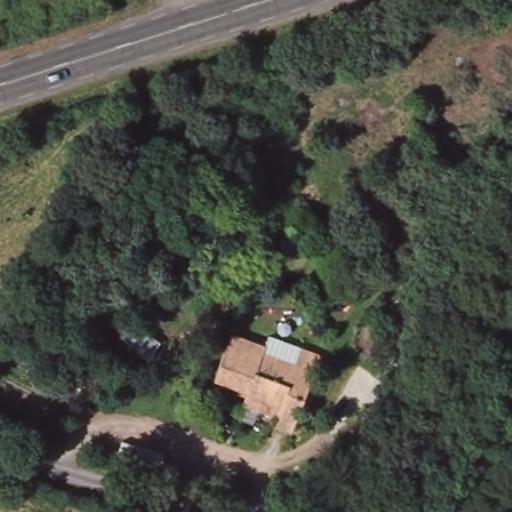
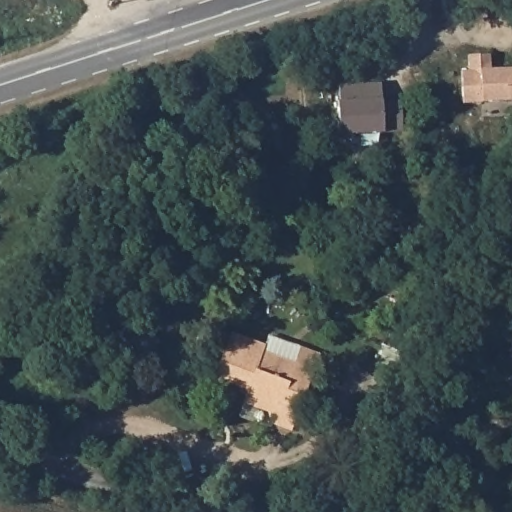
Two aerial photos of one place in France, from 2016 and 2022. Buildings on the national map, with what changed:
new [(470,55),(492,54),(492,69),(512,69),(512,101),(464,103),(463,70),(471,70),(470,55)]
new [(341,83),(356,82),(383,81),(383,98),(383,100),(402,100),(404,130),(340,133),(338,100),(341,99),(341,83)]
unchanged [(232,334),(267,346),(266,351),(316,371),(294,431),(275,423),(278,414),(245,401),(250,389),(216,378),(232,334)]

